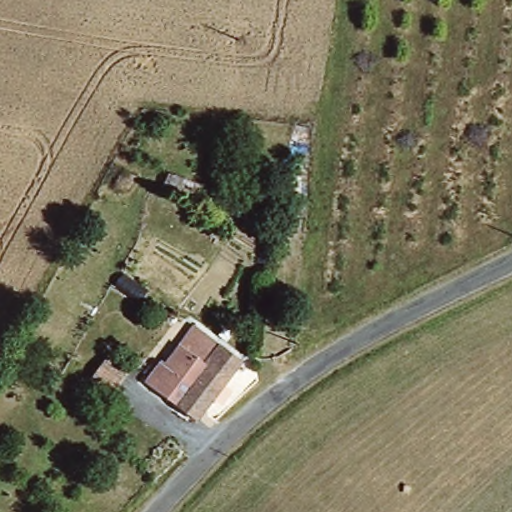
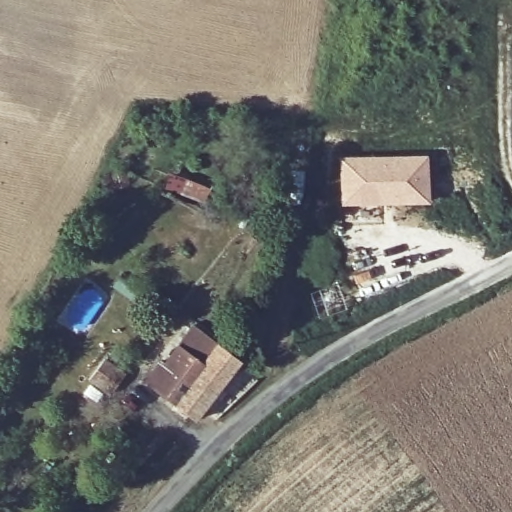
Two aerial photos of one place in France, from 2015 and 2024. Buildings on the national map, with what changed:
new [(430,204),(341,206),(340,157),(426,156),(430,204)]
unchanged [(240,355),(196,417),(142,380),(159,356),(164,360),(191,321),(240,355)]
unchanged [(118,383),(103,405),(84,391),(99,370),(118,383)]

